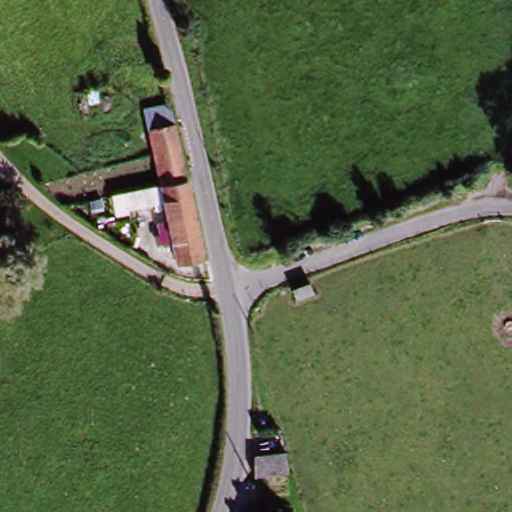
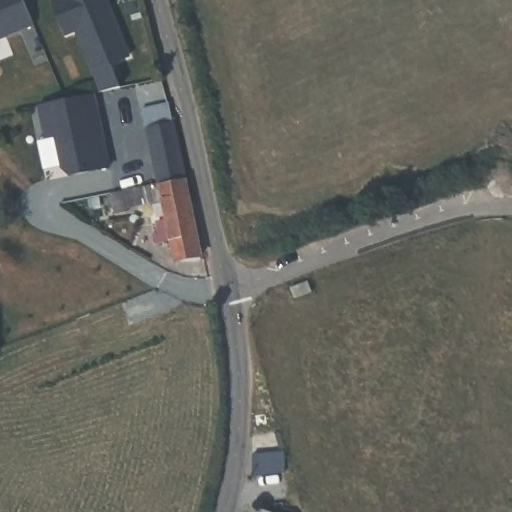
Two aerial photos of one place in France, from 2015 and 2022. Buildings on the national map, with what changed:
new [(21,0),(30,22),(0,34),(0,0),(21,0)]
new [(77,29),(65,34),(52,0),(106,0),(129,56),(109,63),(119,88),(101,91),(77,29)]
new [(90,90),(102,140),(104,139),(109,167),(73,175),(65,170),(56,129),(47,132),(40,102),(90,90)]
unchanged [(140,114),(169,109),(187,186),(157,192),(140,114)]
unchanged [(168,244),(157,192),(187,186),(199,232),(200,238),(207,262),(174,269),(168,244)]
unchanged [(309,282),(312,292),(295,299),(291,289),(309,282)]
unchanged [(291,460),(295,473),(287,473),(279,473),(260,473),(262,459),(291,460)]
unchanged [(271,490),(270,477),(283,477),(287,477),(289,490),(286,490),(271,490)]

